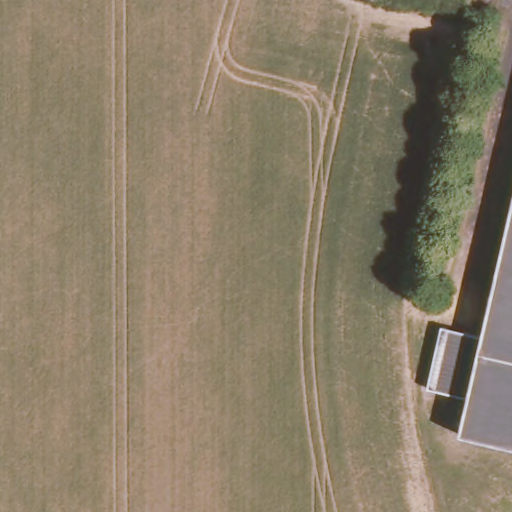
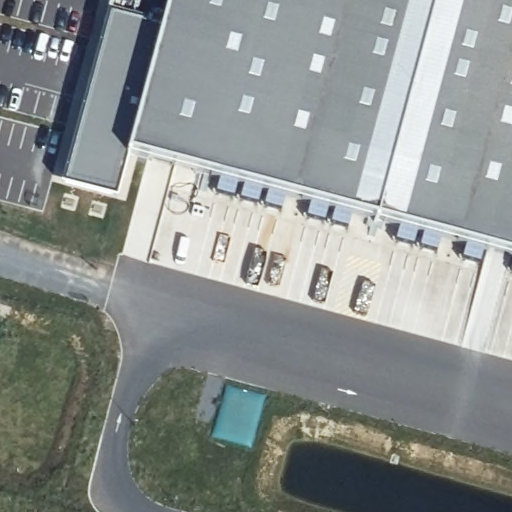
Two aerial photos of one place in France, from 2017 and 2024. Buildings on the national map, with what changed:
new [(66,185),(112,0),(512,0),(512,260),(125,155),(115,195),(66,185)]
demolished [(467,392),(425,392),(438,331),(477,332),(512,188),(512,450),(458,438),(467,392)]

